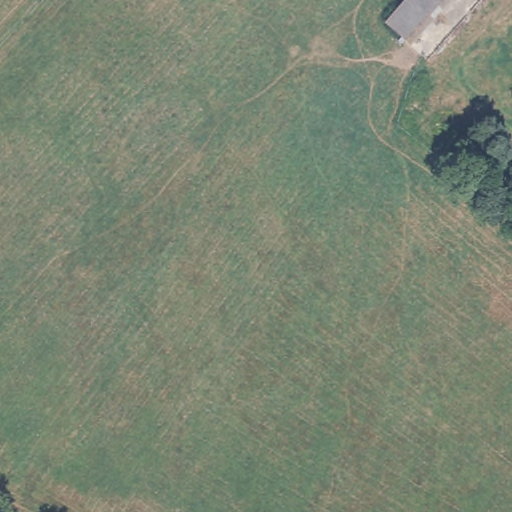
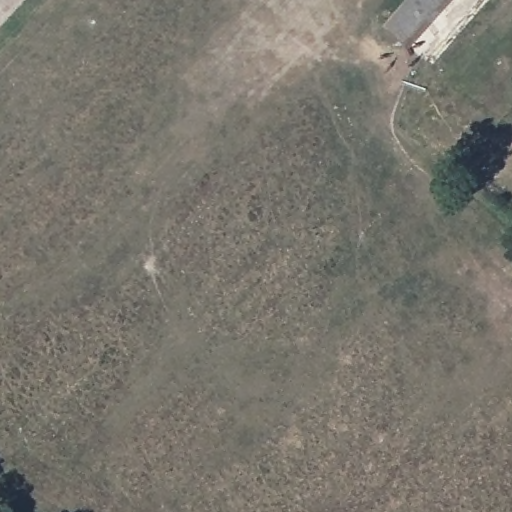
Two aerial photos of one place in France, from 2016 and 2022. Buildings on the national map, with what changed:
unchanged [(401,0),(450,0),(410,46),(384,21),(401,0)]

